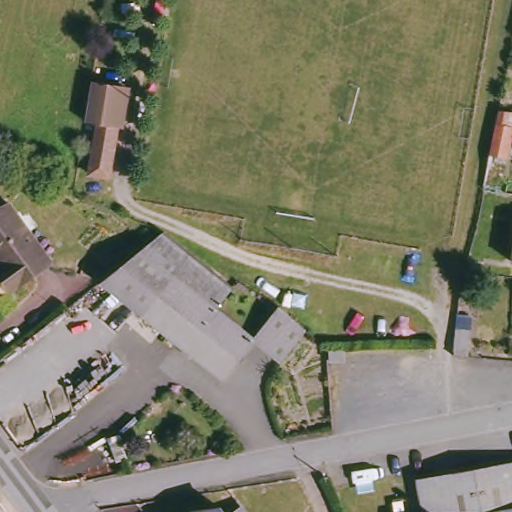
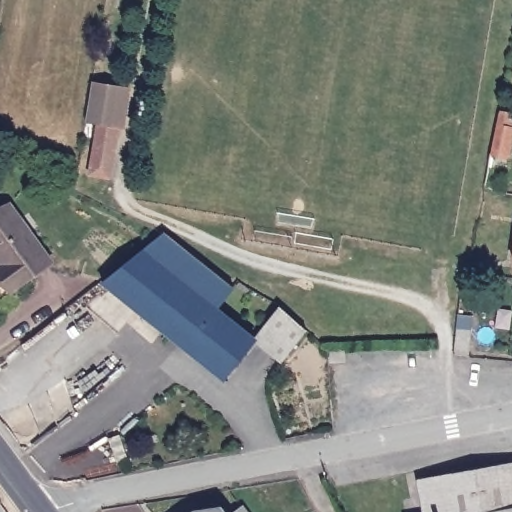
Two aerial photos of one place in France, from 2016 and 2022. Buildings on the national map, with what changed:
unchanged [(99,78),(132,83),(117,174),(98,171),(106,121),(92,119),(99,78)]
unchanged [(490,155),(499,108),(512,111),(512,164),(505,188),(489,185),(490,155)]
unchanged [(0,274),(5,271),(0,265),(0,213),(15,200),(57,257),(10,294),(0,282),(0,274)]
unchanged [(234,285),(235,286),(217,307),(258,340),(282,309),(310,330),(285,362),(258,341),(227,379),(185,346),(105,281),(152,243),(165,233),(196,257),(234,285)]
unchanged [(459,327),(473,329),(470,354),(457,353),(459,327)]
unchanged [(361,346),(362,354),(349,355),(347,347),(361,346)]
unchanged [(512,467),(512,512),(425,512),(420,483),(512,467)]

